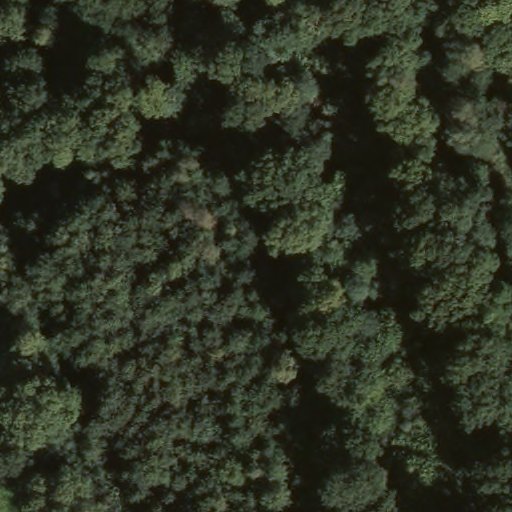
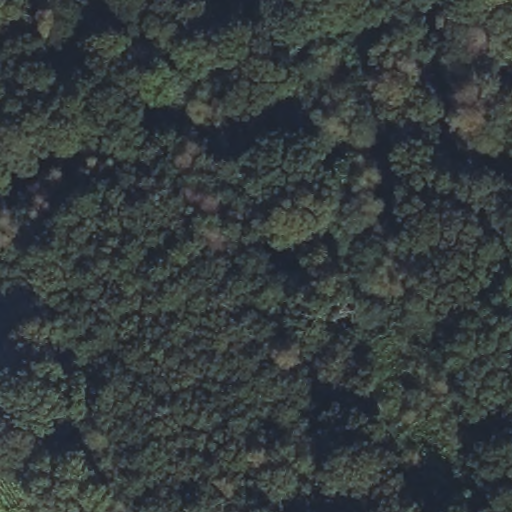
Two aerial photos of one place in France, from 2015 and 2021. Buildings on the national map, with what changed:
[]

